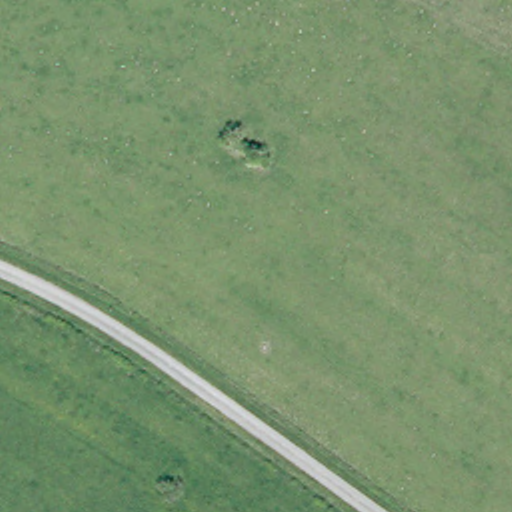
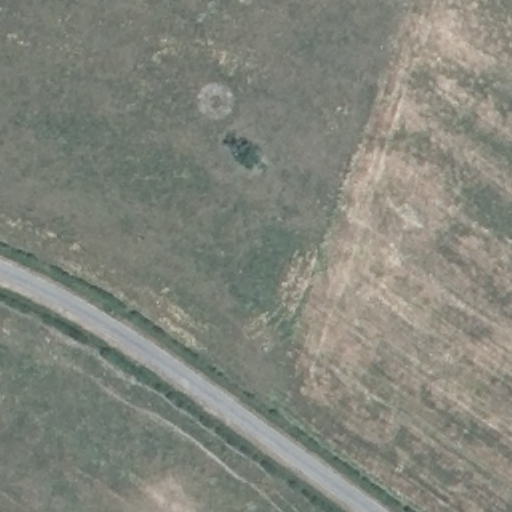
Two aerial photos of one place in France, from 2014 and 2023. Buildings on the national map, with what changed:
[]

